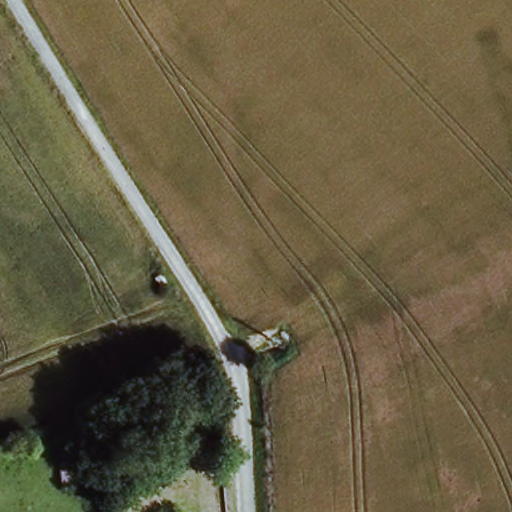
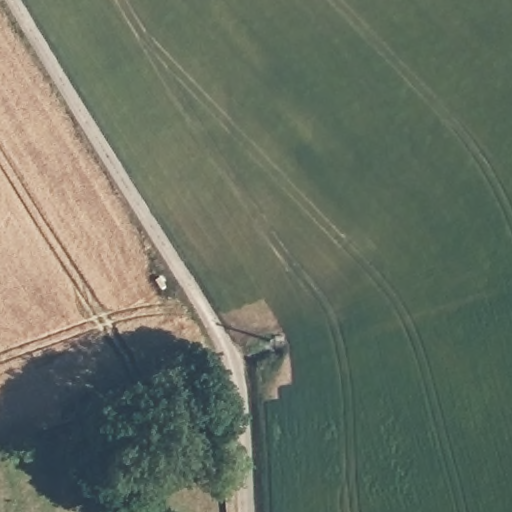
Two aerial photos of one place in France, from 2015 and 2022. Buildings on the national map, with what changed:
unchanged [(82,465),(84,485),(66,487),(64,467),(82,465)]

